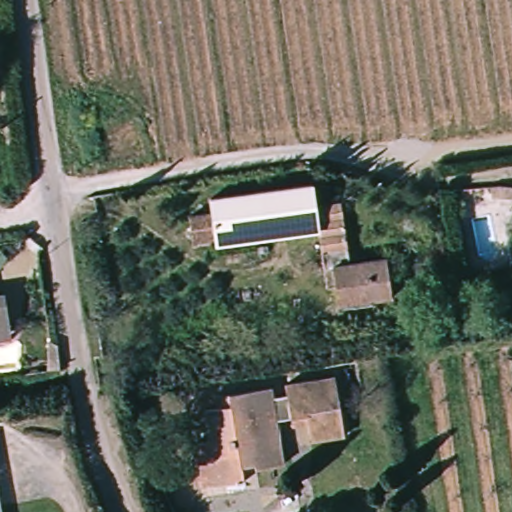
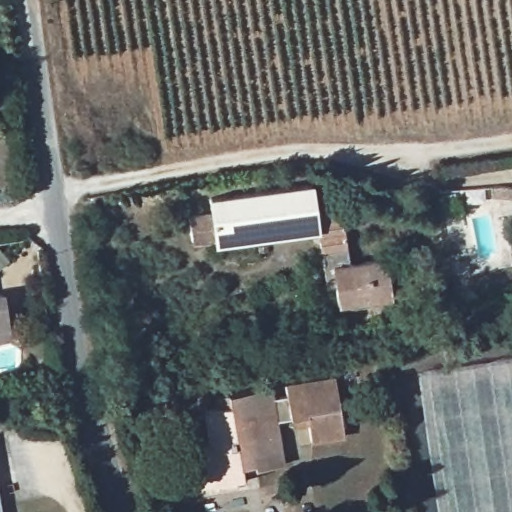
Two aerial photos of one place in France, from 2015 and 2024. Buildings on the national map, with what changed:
unchanged [(217,207),(311,191),(316,212),(346,207),(358,269),(334,272),(329,273),(320,229),(224,245),(195,249),(192,229),(220,224),(217,207)]
unchanged [(334,272),(358,269),(388,265),(395,300),(342,308),(334,272)]
unchanged [(16,333),(0,336),(0,288),(8,288),(16,333)]
new [(512,358),(512,512),(437,512),(417,373),(512,358)]
unchanged [(348,434),(312,441),(306,415),(280,420),(278,413),(264,416),(270,444),(280,441),(285,465),(244,472),(246,479),(196,488),(188,442),(206,438),(202,416),(223,413),(220,394),(272,385),(274,395),(287,393),(285,382),(333,374),(348,434)]
unchanged [(0,512),(0,488),(4,512),(0,512)]

